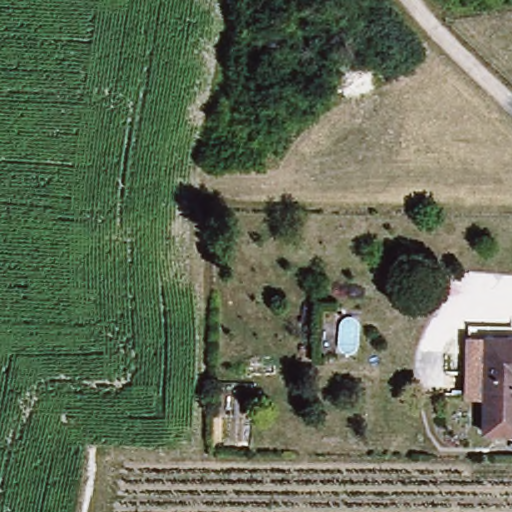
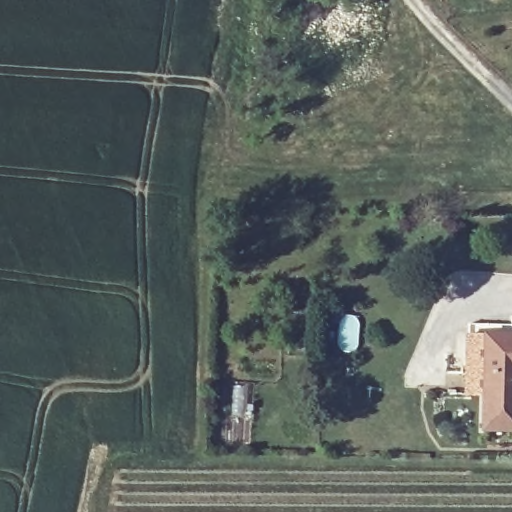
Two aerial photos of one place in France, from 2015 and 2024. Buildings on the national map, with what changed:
unchanged [(482,398),(462,397),(466,332),(487,333),(482,398)]
unchanged [(480,429),(487,333),(512,336),(512,431),(480,429)]

